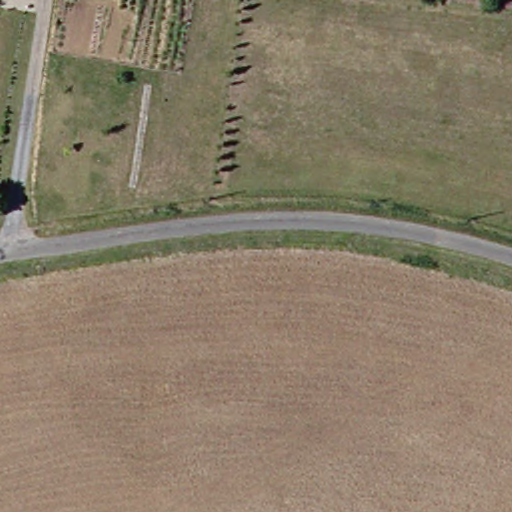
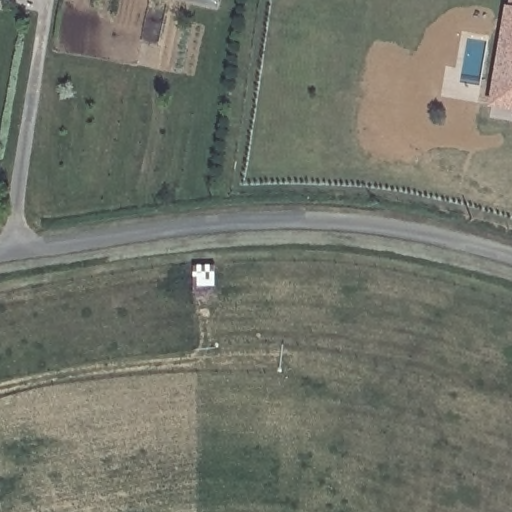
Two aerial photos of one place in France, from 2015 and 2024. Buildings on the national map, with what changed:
new [(512,5),(512,109),(488,104),(505,4),(512,5)]

